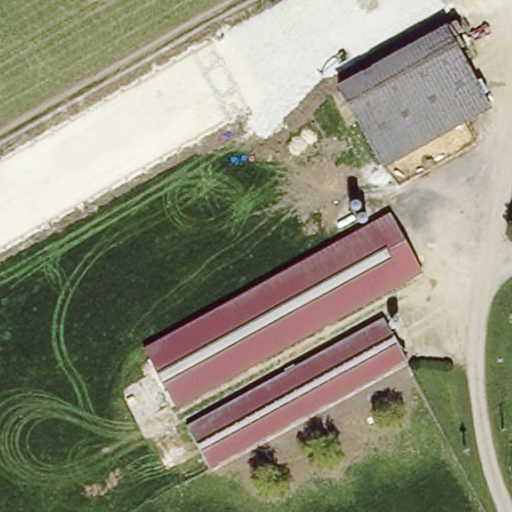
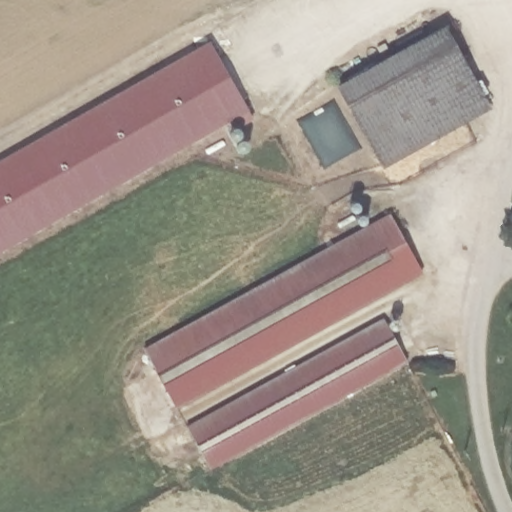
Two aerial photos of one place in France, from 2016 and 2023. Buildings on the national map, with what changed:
unchanged [(445,27),(491,110),(380,171),(334,88),(445,27)]
new [(249,108),(0,250),(0,161),(209,41),(249,108)]
unchanged [(371,226),(402,284),(174,410),(142,352),(371,226)]
unchanged [(395,318),(397,319),(397,320),(399,321),(400,322),(400,324),(400,326),(400,327),(399,328),(398,329),(397,330),(396,331),(395,331),(393,331),(392,331),(391,330),(389,329),(388,328),(387,327),(387,325),(387,324),(387,322),(388,321),(389,320),(390,319),(392,319),(393,318),(395,318)]
unchanged [(382,320),(406,363),(207,471),(184,428),(382,320)]

